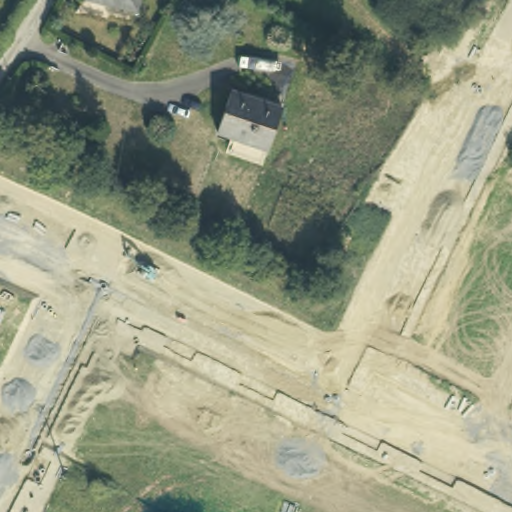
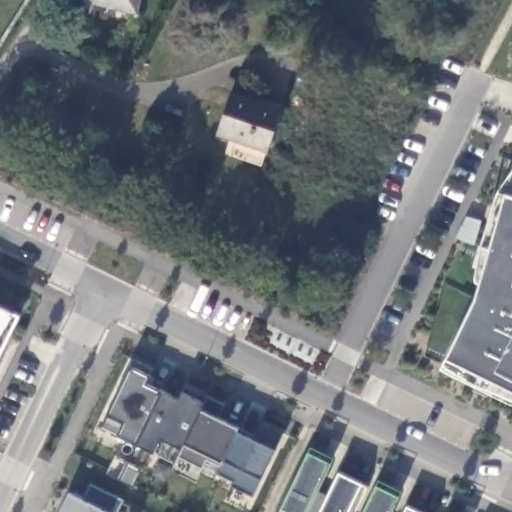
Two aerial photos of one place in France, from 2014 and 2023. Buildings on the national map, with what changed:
unchanged [(135,11),(86,0),(138,0),(135,11)]
unchanged [(217,132),(230,95),(279,110),(265,149),(261,159),(232,148),(235,139),(217,132)]
new [(510,398),(475,382),(446,367),(445,362),(447,355),(475,298),(480,285),(475,276),(481,244),(497,189),(512,167),(512,398),(510,398)]
new [(20,316),(0,356),(0,306),(12,312),(20,316)]
new [(135,358),(152,367),(150,375),(145,383),(161,391),(179,399),(182,391),(205,401),(201,410),(238,428),(222,461),(219,465),(206,460),(202,467),(179,456),(175,462),(155,452),(118,435),(100,427),(107,413),(131,366),(135,358)]
new [(331,463),(318,488),(329,494),(339,473),(360,482),(366,485),(354,512),(308,512),(307,511),(307,512),(290,512),(282,508),(308,453),(331,463)]
new [(85,501),(92,483),(124,500),(118,512),(60,512),(69,492),(85,501)]
new [(397,495),(403,498),(397,512),(365,512),(378,485),(397,495)]
new [(419,512),(405,512),(408,506),(419,512)]

